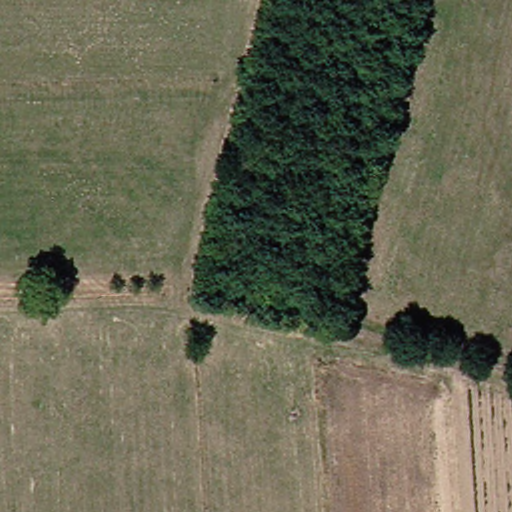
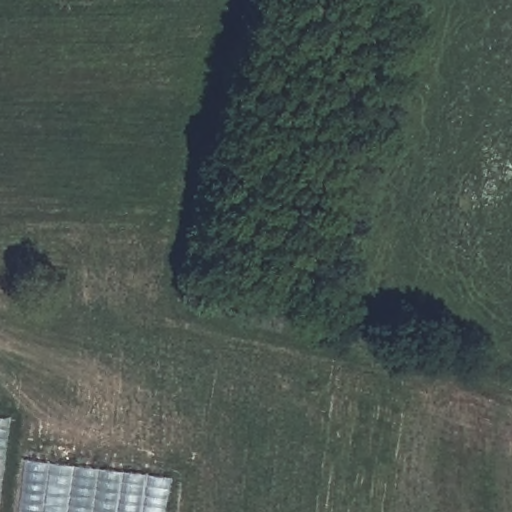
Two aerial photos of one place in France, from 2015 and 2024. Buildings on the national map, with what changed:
new [(0,512),(0,417),(13,418),(1,512),(0,512)]
new [(20,512),(28,459),(175,476),(169,512),(20,512)]

